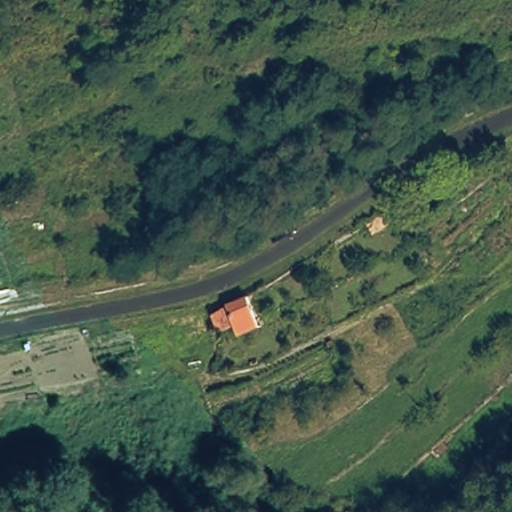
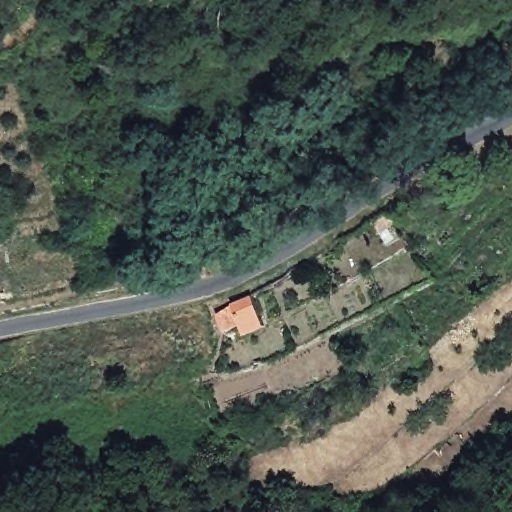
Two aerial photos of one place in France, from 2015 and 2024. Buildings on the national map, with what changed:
unchanged [(272,329),(245,341),(242,329),(225,336),(217,313),(232,308),(229,302),(253,293),(272,329)]

